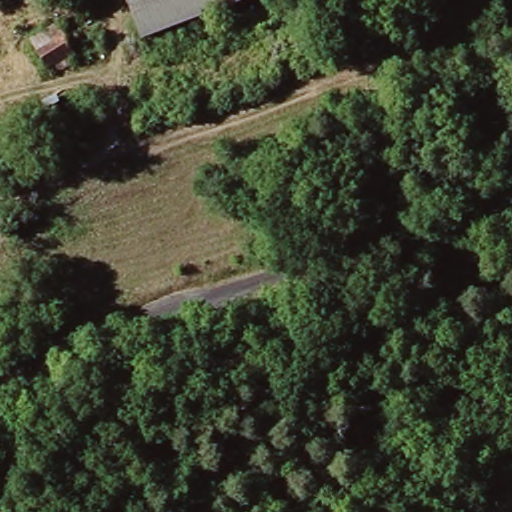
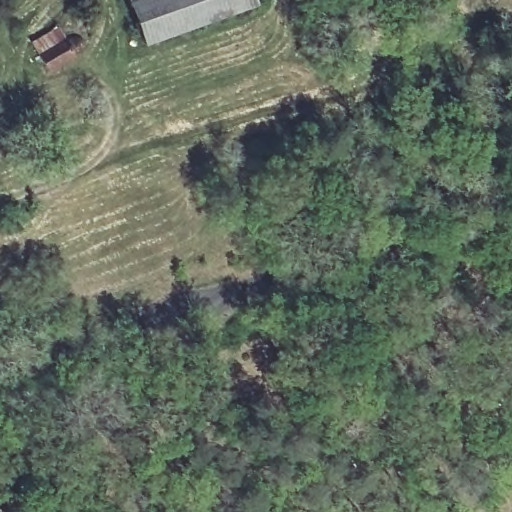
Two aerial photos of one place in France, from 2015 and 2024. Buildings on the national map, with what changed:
unchanged [(143,46),(127,0),(254,0),(257,7),(143,46)]
unchanged [(77,36),(81,43),(81,38),(83,34),(87,31),(92,31),(97,34),(100,37),(100,42),(97,47),(93,50),(88,50),(84,47),(87,55),(54,70),(46,52),(77,36)]

